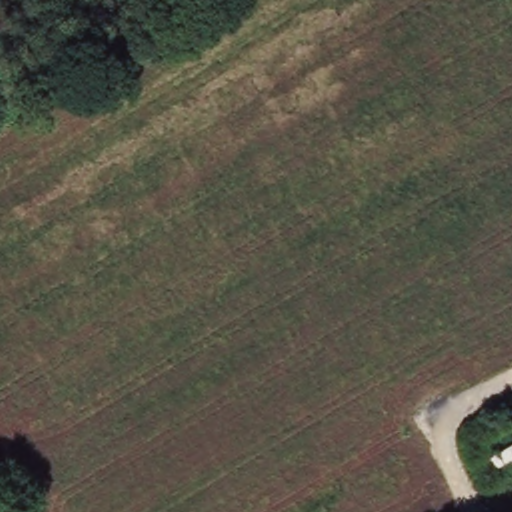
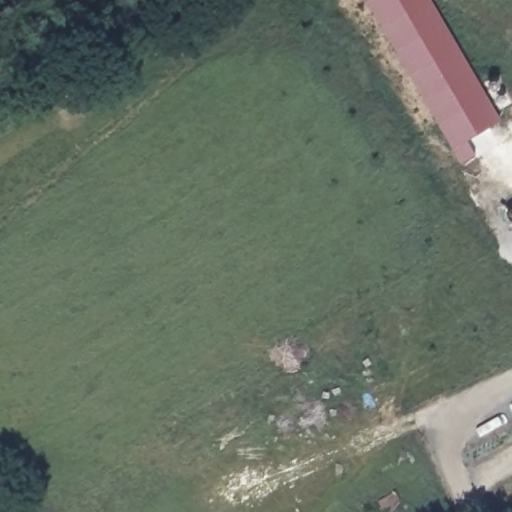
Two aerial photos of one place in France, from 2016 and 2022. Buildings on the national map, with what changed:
new [(452,148),(365,0),(371,0),(456,146),(452,148)]
new [(497,122),(466,140),(475,155),(460,164),(452,149),(452,148),(456,146),(371,0),(431,0),(500,120),(497,122)]

